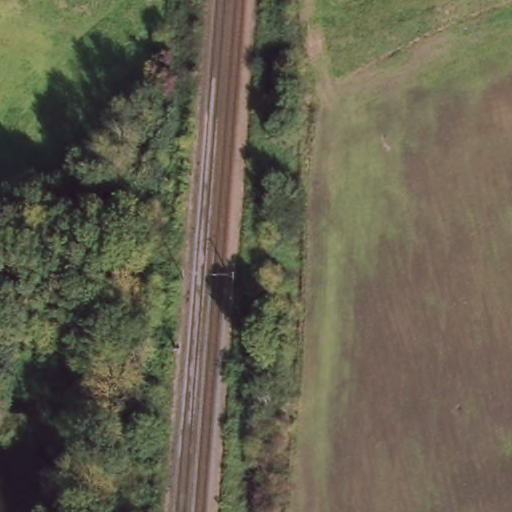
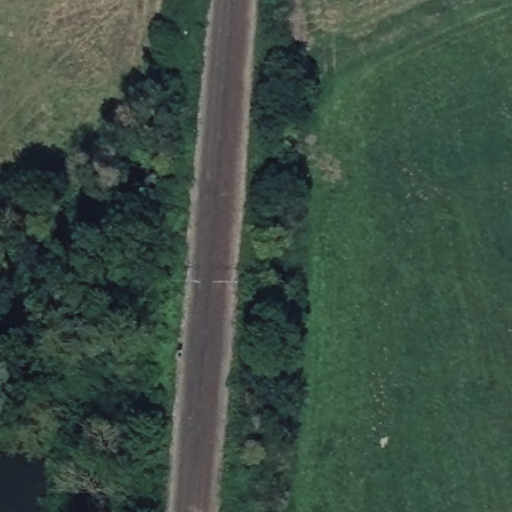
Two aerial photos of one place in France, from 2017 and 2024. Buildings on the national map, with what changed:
[]

